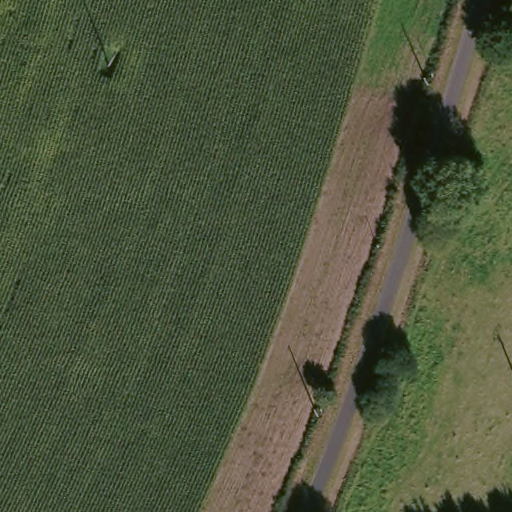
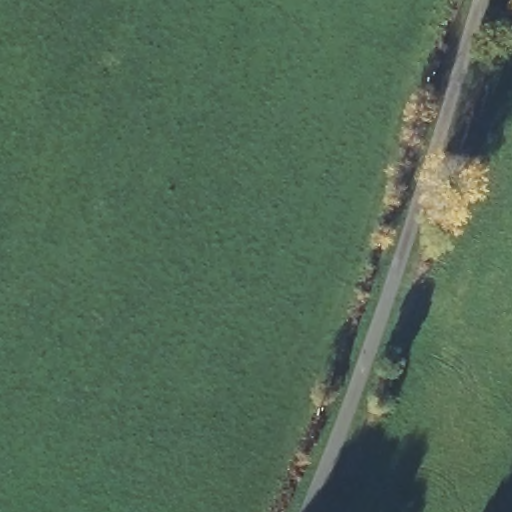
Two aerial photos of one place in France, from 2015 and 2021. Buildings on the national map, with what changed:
[]

